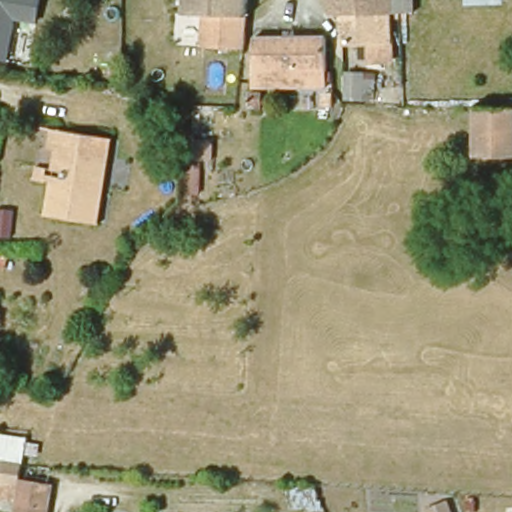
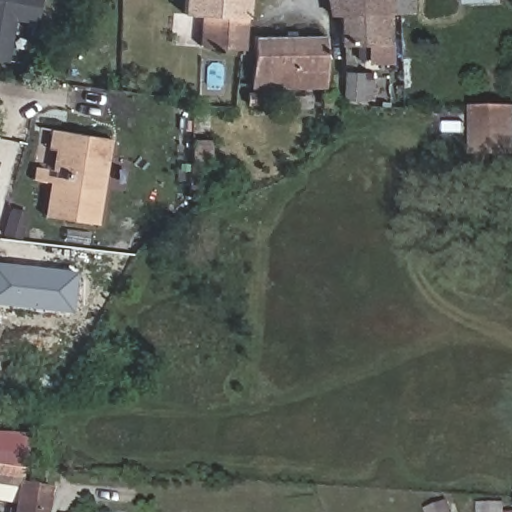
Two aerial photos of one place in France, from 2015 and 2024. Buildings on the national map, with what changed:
unchanged [(18,20),(11,59),(0,58),(0,0),(44,0),(40,24),(18,20)]
unchanged [(188,15),(188,0),(248,0),(247,17),(207,15),(205,15),(188,15)]
unchanged [(370,44),(344,44),(344,15),(335,16),(334,10),(331,0),(413,0),(413,13),(401,14),(391,14),(391,60),(369,60),(370,44)]
unchanged [(207,15),(247,17),(245,50),(204,49),(207,15)]
unchanged [(254,87),(256,37),(326,36),(327,86),(254,87)]
unchanged [(366,73),(364,101),(346,101),(347,72),(366,73)]
unchanged [(262,106),(251,106),(251,95),(262,95),(262,106)]
unchanged [(512,109),(512,158),(476,156),(474,111),(512,109)]
unchanged [(55,218),(59,186),(45,185),(51,131),(66,133),(114,140),(102,224),(55,218)]
new [(72,311),(0,303),(0,262),(76,271),(72,311)]
unchanged [(0,431),(30,440),(25,464),(0,459),(0,431)]
unchanged [(0,463),(23,467),(23,468),(20,485),(49,490),(45,512),(15,512),(20,486),(0,483),(0,463)]
demolished [(322,510),(288,509),(288,490),(321,490),(322,510)]
unchanged [(449,500),(453,512),(423,512),(423,511),(449,500)]

